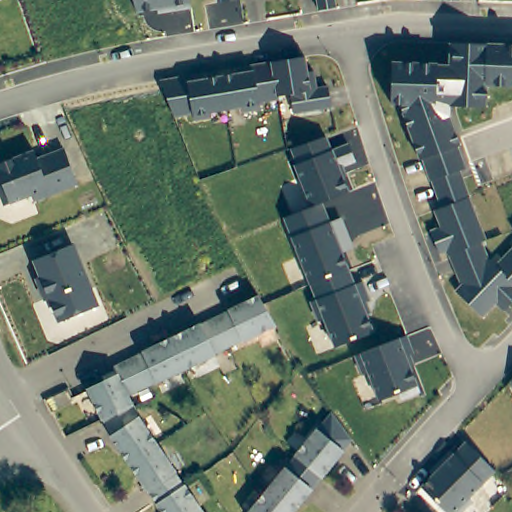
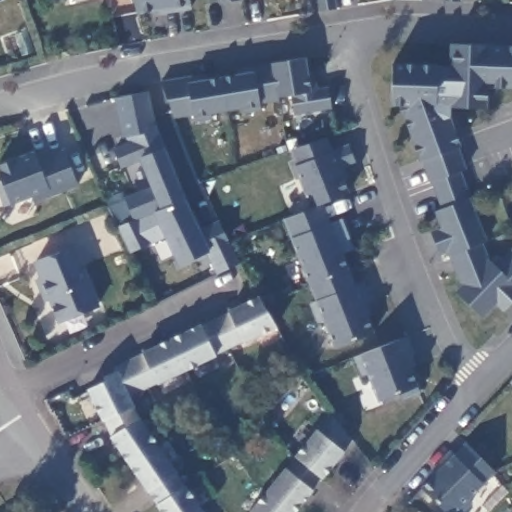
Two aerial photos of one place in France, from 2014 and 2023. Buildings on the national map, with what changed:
unchanged [(0,0),(7,0),(0,2),(0,0)]
unchanged [(157,15),(157,11),(139,14),(134,0),(190,0),(191,10),(157,15)]
unchanged [(221,0),(242,0),(222,4),(221,0)]
unchanged [(318,12),(316,0),(335,0),(337,9),(318,12)]
unchanged [(442,1),(442,0),(460,0),(460,2),(442,1)]
unchanged [(488,87),(487,107),(450,106),(451,118),(461,147),(458,148),(466,170),(461,171),(486,241),(482,243),(487,257),(498,262),(512,248),(512,305),(504,313),(496,305),(483,319),(453,292),(461,284),(447,254),(438,257),(428,230),(439,226),(434,209),(438,206),(422,160),(420,161),(399,104),(391,104),(393,61),(448,64),(450,43),(492,44),(512,45),(512,88),(488,87)]
unchanged [(332,110),(296,115),(292,95),(277,98),(278,102),(261,105),(262,111),(244,115),(242,109),(211,114),(212,119),(196,122),(194,116),(175,118),(159,80),(204,73),(206,77),(252,70),(251,65),(306,56),(309,75),(316,73),(317,89),(329,87),(332,110)]
new [(216,273),(208,252),(177,266),(165,238),(130,252),(108,205),(143,189),(132,162),(122,167),(114,146),(127,140),(126,135),(122,135),(114,96),(149,89),(156,121),(165,145),(185,196),(200,228),(218,218),(241,261),(216,273)]
unchanged [(333,348),(323,322),(317,324),(309,301),(316,300),(282,219),(310,207),(290,149),(329,136),(333,149),(350,144),(357,165),(344,171),(352,194),(325,204),(332,222),(344,219),(357,249),(345,255),(357,286),(365,282),(373,302),(368,304),(372,315),(368,318),(375,335),(333,348)]
unchanged [(32,197),(11,205),(0,176),(0,163),(37,150),(42,160),(66,150),(80,189),(35,204),(32,197)]
unchanged [(58,323),(48,301),(45,301),(36,277),(40,276),(33,258),(75,241),(101,307),(58,323)]
unchanged [(155,509),(157,508),(148,496),(147,496),(129,470),(110,440),(111,440),(103,424),(102,425),(89,397),(87,393),(104,385),(102,380),(115,375),(113,371),(142,357),(142,356),(174,340),(199,328),(200,329),(227,315),(227,314),(258,299),(258,300),(262,306),(276,330),(242,344),(215,358),(215,359),(192,370),(157,387),(156,386),(128,400),(139,421),(159,451),(176,477),(175,478),(183,490),(184,490),(199,512),(157,512),(155,509)]
unchanged [(417,358),(410,361),(419,387),(377,403),(367,374),(361,377),(353,356),(407,335),(417,358)]
unchanged [(509,381),(512,378),(512,387),(509,381)]
unchanged [(271,486),(287,466),(288,467),(297,455),(319,428),(320,428),(334,412),(336,415),(350,433),(353,438),(345,449),(346,450),(323,476),(322,476),(313,487),(314,488),(294,512),(249,512),(271,486)]
unchanged [(467,497),(470,500),(458,512),(453,512),(452,511),(451,512),(446,512),(421,486),(439,468),(436,465),(450,450),(453,454),(465,442),(492,468),(493,470),(467,497)]

